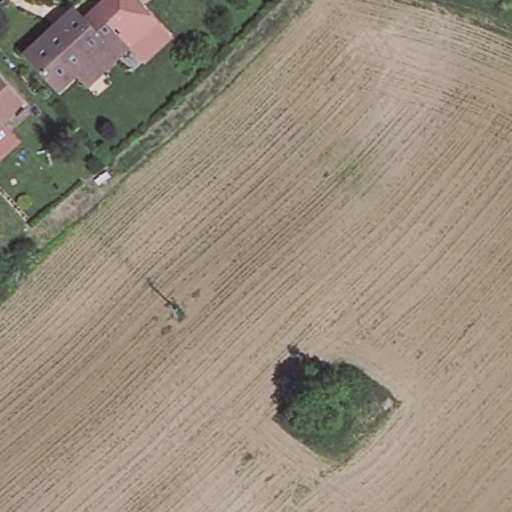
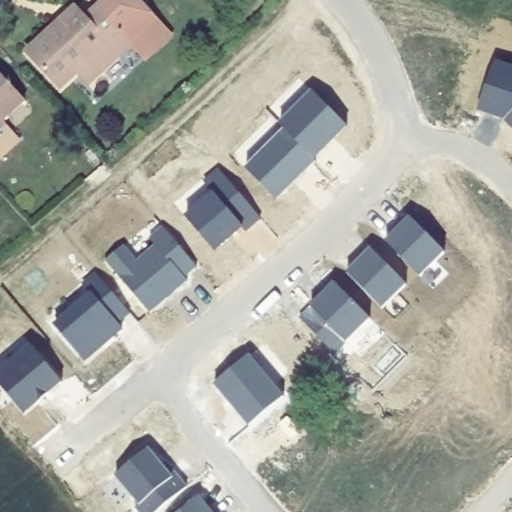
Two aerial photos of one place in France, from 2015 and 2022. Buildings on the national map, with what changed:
unchanged [(99,70),(87,57),(55,86),(24,52),(54,24),(55,26),(62,25),(76,11),(82,18),(102,0),(138,0),(151,14),(174,38),(152,60),(132,40),(132,41),(131,41),(99,70)]
new [(495,63),(512,69),(512,119),(509,116),(506,119),(479,110),(495,63)]
unchanged [(4,121),(7,126),(0,132),(0,74),(25,102),(4,121)]
new [(345,125),(312,157),(315,160),(275,197),(245,168),(285,127),(280,121),(311,88),(345,125)]
new [(212,189),(206,181),(220,170),(260,219),(245,231),(241,225),(214,249),(186,215),(212,189)]
new [(388,242),(390,243),(400,232),(396,228),(409,215),(446,253),(422,277),(387,242),(388,242)]
new [(125,247),(139,262),(157,247),(151,240),(164,228),(198,268),(186,279),(189,282),(177,293),(170,292),(166,296),(169,299),(151,314),(107,263),(125,247)]
new [(349,273),(350,275),(362,264),(360,262),(372,250),(408,285),(384,310),(348,274),(349,273)]
new [(94,296),(86,287),(99,276),(131,314),(119,324),(124,330),(86,362),(57,328),(94,296)]
new [(312,307),(315,309),(325,298),(324,297),(336,284),(372,320),(336,355),(300,319),(312,307)]
new [(65,384),(51,395),(52,395),(50,397),(42,402),(44,403),(41,405),(40,404),(27,416),(0,385),(0,376),(34,347),(65,384)]
new [(250,356),(285,398),(251,428),(216,386),(250,356)]
new [(290,418),(301,432),(293,439),(281,426),(290,418)]
new [(164,467),(169,464),(177,475),(189,488),(160,512),(141,512),(137,509),(142,506),(117,477),(150,449),(164,467)]
new [(200,498),(212,511),(211,512),(184,512),(200,498)]

